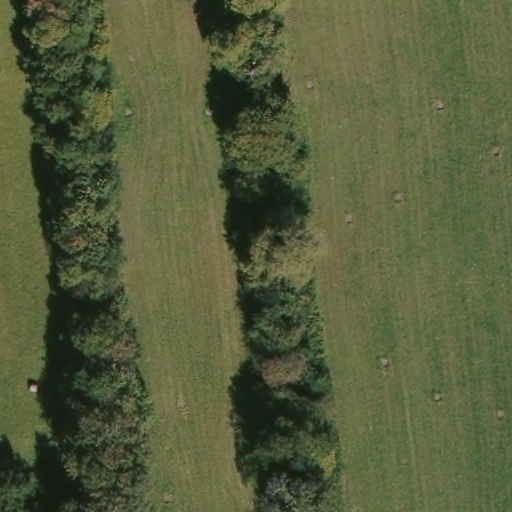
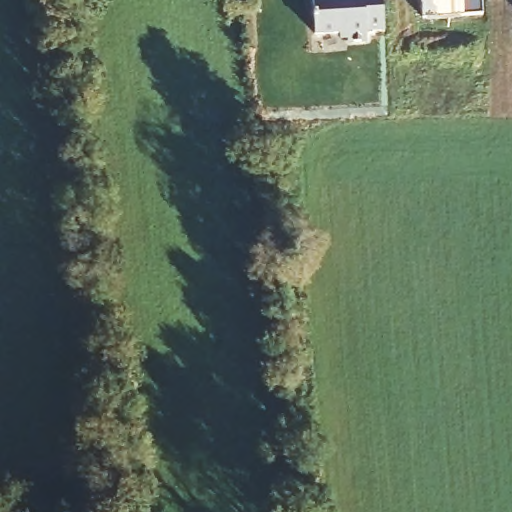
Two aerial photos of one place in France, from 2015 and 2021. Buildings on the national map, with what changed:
new [(384,32),(366,33),(366,42),(346,43),(346,40),(340,40),(340,34),(316,35),(313,0),(382,0),(384,32)]

